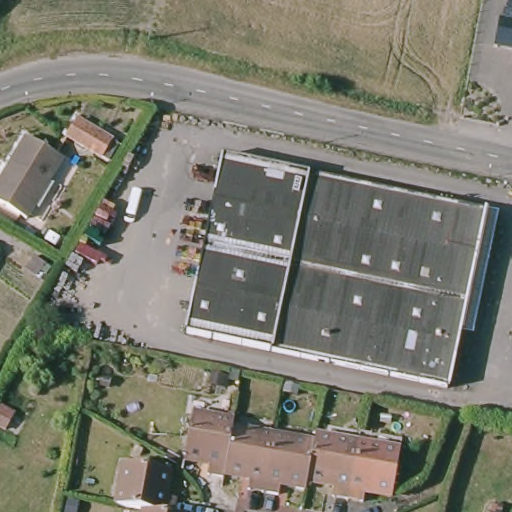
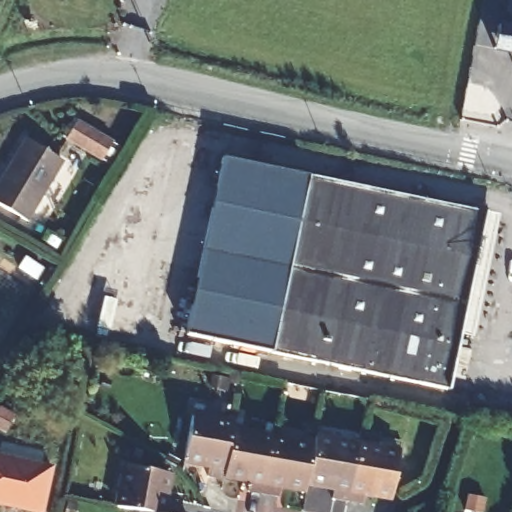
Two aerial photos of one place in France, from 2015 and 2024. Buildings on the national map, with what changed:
unchanged [(496,47),(500,24),(507,25),(511,0),(512,0),(512,51),(496,47)]
unchanged [(67,140),(77,122),(110,141),(107,146),(114,150),(106,163),(67,140)]
unchanged [(26,221),(0,206),(0,184),(26,140),(62,162),(26,221)]
unchanged [(443,392),(181,336),(218,157),(481,213),(443,392)]
unchanged [(229,445),(226,462),(226,465),(226,469),(211,467),(212,457),(186,451),(194,407),(234,413),(233,421),(229,445)]
unchanged [(251,482),(252,471),(226,465),(226,462),(229,445),(233,421),(275,428),(265,485),(251,482)]
unchanged [(281,477),(280,487),(265,485),(275,428),(317,436),(310,473),(309,481),(281,477)]
unchanged [(334,490),(336,478),(310,473),(317,436),(317,429),(358,437),(349,492),(334,490)]
unchanged [(358,437),(400,444),(392,490),(365,484),(364,496),(349,492),(358,437)]
new [(43,512),(29,512),(0,506),(0,454),(55,465),(43,512)]
unchanged [(119,466),(164,475),(159,501),(170,502),(168,512),(139,512),(112,507),(119,466)]

